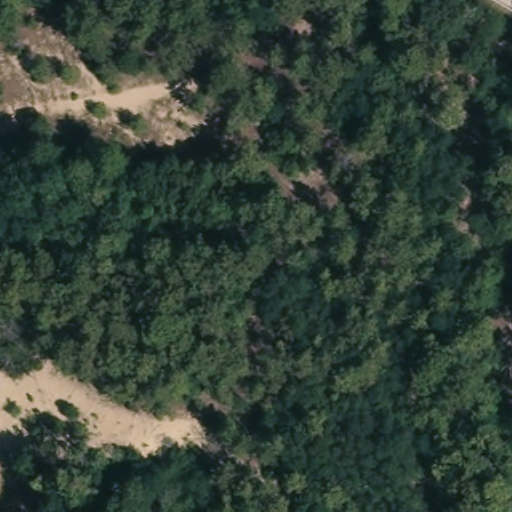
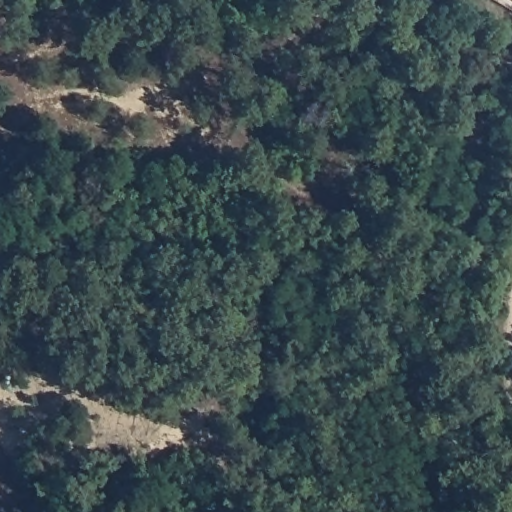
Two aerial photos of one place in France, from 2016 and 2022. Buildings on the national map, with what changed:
unchanged [(512,0),(512,2),(509,0),(512,0)]

